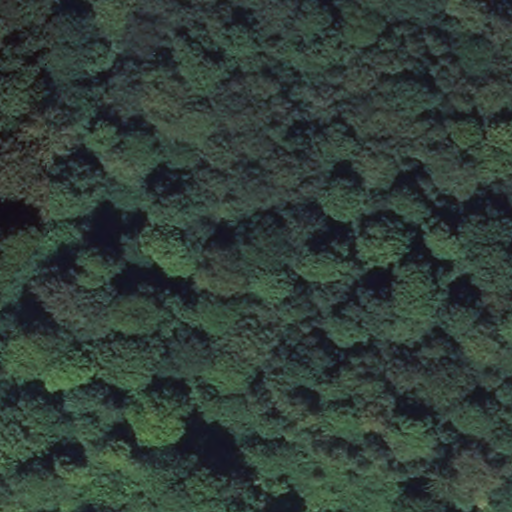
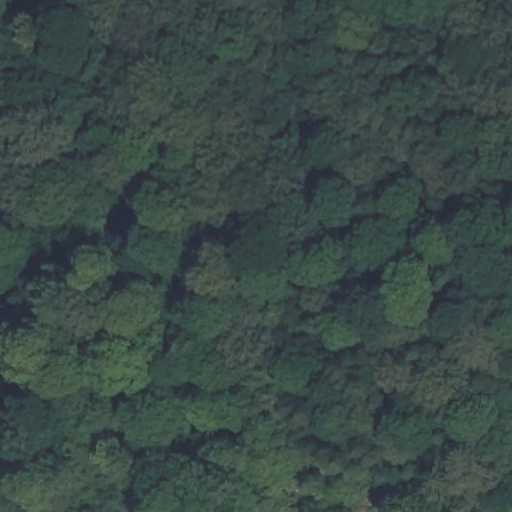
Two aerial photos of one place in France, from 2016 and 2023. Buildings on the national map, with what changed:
[]

